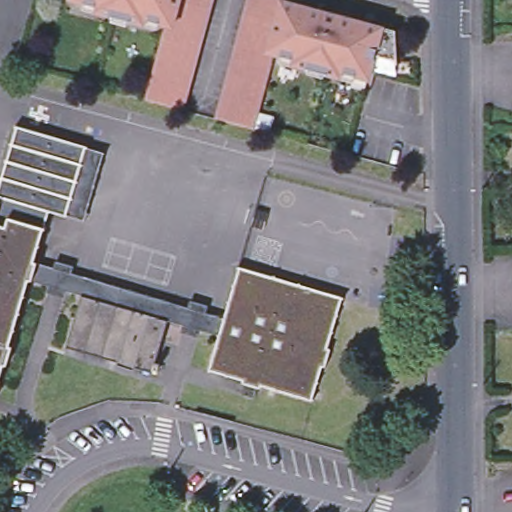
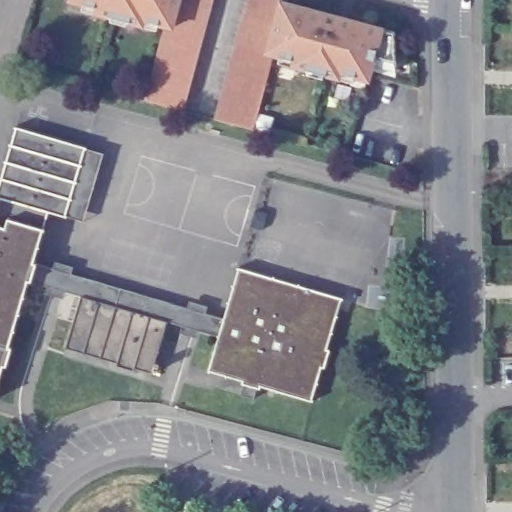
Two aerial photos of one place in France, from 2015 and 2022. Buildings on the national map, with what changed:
unchanged [(169,26),(162,24),(155,22),(80,3),(68,0),(176,0),(169,26)]
unchanged [(181,111),(142,100),(162,24),(169,26),(176,0),(210,0),(181,111)]
unchanged [(250,129),(212,119),(243,0),(276,0),(264,51),(270,53),(250,129)]
unchanged [(323,11),(323,13),(332,15),(391,29),(393,60),(371,55),(366,78),(352,74),(270,53),(264,51),(276,0),(279,0),(323,11)]
unchanged [(240,383),(240,379),(206,369),(216,335),(166,320),(153,364),(157,365),(155,373),(150,373),(134,369),(133,372),(113,367),(114,363),(63,349),(79,295),(26,280),(8,346),(10,347),(5,365),(1,364),(0,370),(0,200),(0,189),(16,129),(85,149),(65,220),(46,215),(33,261),(222,316),(236,265),(340,295),(325,348),(328,348),(323,366),(319,365),(309,400),(260,385),(259,388),(253,387),(250,399),(237,396),(240,383)]
unchanged [(102,154),(82,225),(65,220),(85,149),(102,154)]

